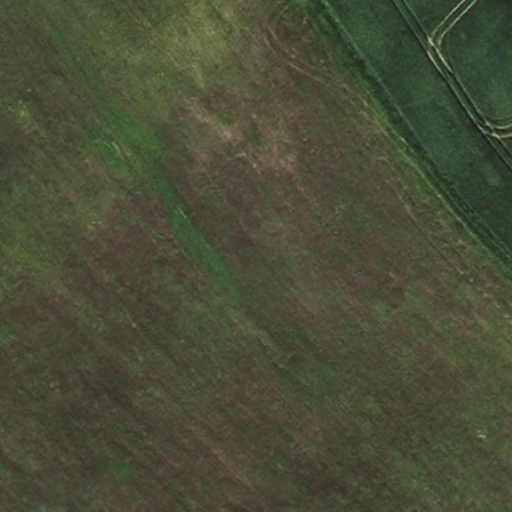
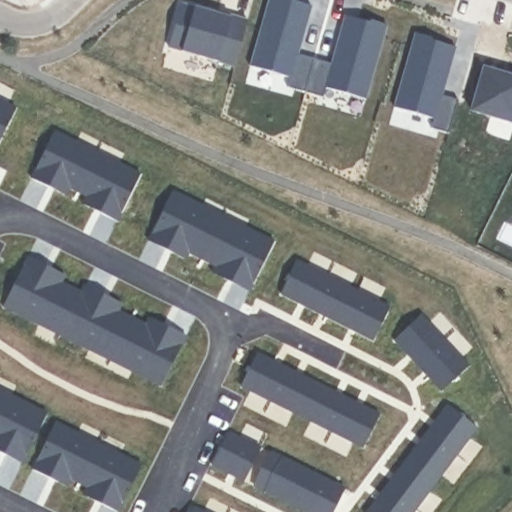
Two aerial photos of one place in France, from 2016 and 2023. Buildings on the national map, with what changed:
new [(292,0),(312,6),(298,54),(314,59),(305,93),(287,89),(290,79),(250,66),(269,0),(292,0)]
new [(181,4),(231,18),(232,15),(247,20),(234,67),(168,48),(181,4)]
new [(314,59),(331,64),(345,16),(369,23),(370,20),(387,25),(366,99),(326,89),(323,99),(305,93),(314,59)]
new [(415,33),(433,38),(432,40),(456,47),(442,95),(458,100),(448,134),(431,129),(434,119),(394,109),(415,33)]
new [(484,68),(510,76),(511,73),(512,73),(512,123),(471,111),(484,68)]
new [(0,141),(0,101),(16,109),(0,141)]
new [(55,131),(72,140),(70,144),(122,170),(124,166),(141,175),(117,222),(101,214),(105,205),(52,179),(48,187),(31,179),(55,131)]
new [(173,192),(201,206),(198,213),(243,235),(246,229),(274,243),(251,289),(234,281),(236,277),(168,243),(166,247),(150,238),(173,192)]
new [(26,260),(44,269),(41,273),(82,293),(83,289),(101,298),(98,302),(166,335),(168,332),(185,340),(162,386),(134,373),(137,366),(91,343),(88,349),(60,335),(62,331),(33,317),(31,321),(3,307),(26,260)]
new [(297,261),(390,309),(374,341),(281,294),(297,261)]
new [(421,315),(469,367),(442,392),(395,340),(421,315)]
new [(257,354),(380,416),(364,448),(240,387),(257,354)]
new [(20,400),(47,414),(25,461),(7,453),(9,448),(0,444),(0,395),(18,404),(20,400)]
new [(448,406),(477,428),(414,512),(368,512),(448,406)]
new [(55,424),(73,432),(71,436),(123,463),(125,458),(141,466),(118,512),(116,512),(101,504),(105,496),(53,470),(49,479),(32,469),(55,424)]
new [(228,433),(261,449),(245,482),(211,467),(228,433)]
new [(264,492),(281,457),(345,489),(333,512),(304,512),(264,492)]
new [(194,508),(203,512),(192,512),(194,508)]

